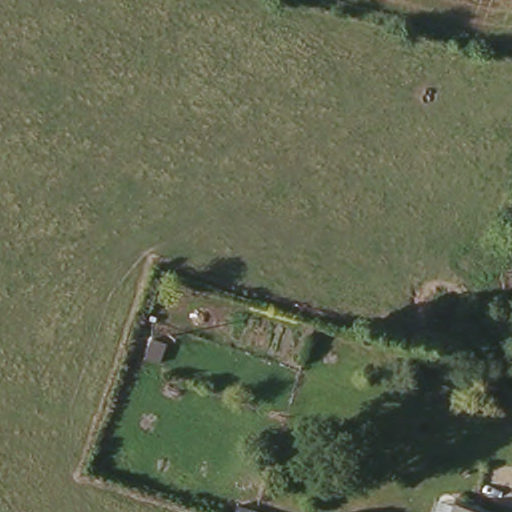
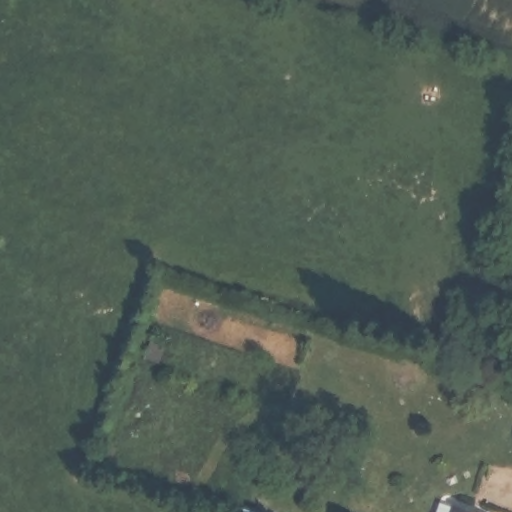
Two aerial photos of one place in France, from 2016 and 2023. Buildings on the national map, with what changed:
unchanged [(495,512),(435,512),(439,499),(453,503),(455,500),(495,512)]

